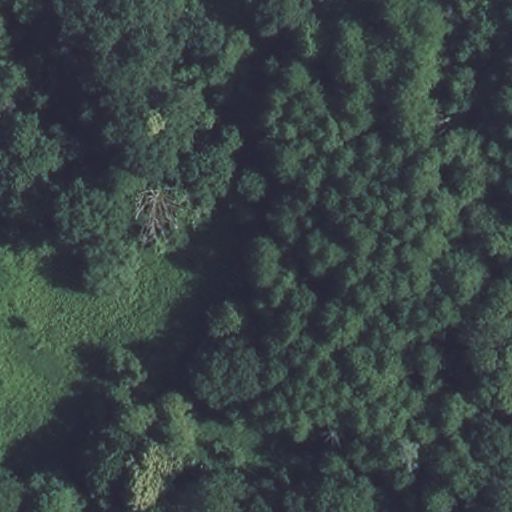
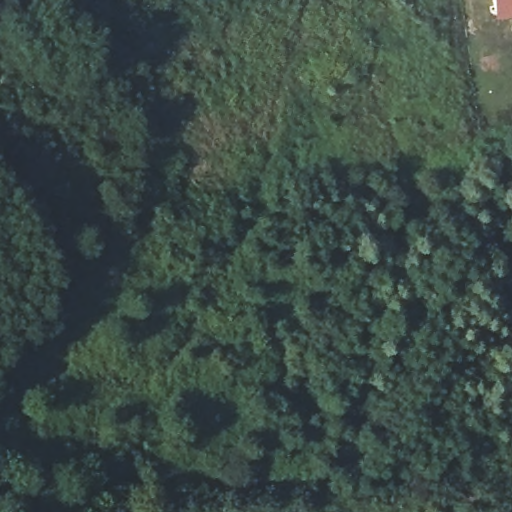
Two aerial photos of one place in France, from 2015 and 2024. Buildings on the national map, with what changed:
new [(512,18),(495,20),(492,0),(512,0),(512,18)]

